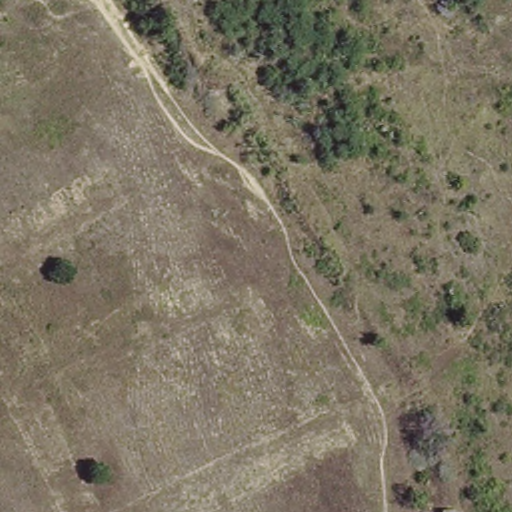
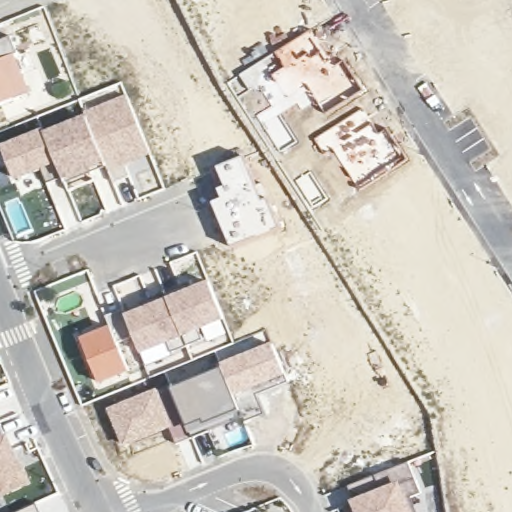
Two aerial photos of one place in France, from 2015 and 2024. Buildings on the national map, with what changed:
new [(18,54),(13,56),(28,94),(0,107),(0,41),(10,37),(18,54)]
new [(58,164),(44,132),(86,116),(84,112),(126,95),(149,154),(125,165),(131,177),(114,184),(107,167),(65,184),(63,177),(58,164)]
new [(40,171),(17,180),(3,146),(43,130),(58,164),(63,177),(48,185),(40,171)]
new [(223,199),(219,189),(226,187),(218,168),(243,157),(256,186),(261,183),(268,199),(281,227),(233,247),(214,202),(223,199)]
new [(209,280),(226,320),(199,331),(202,339),(188,344),(171,351),(168,343),(141,354),(134,337),(134,336),(125,315),(166,298),(209,280)]
new [(120,343),(133,371),(101,383),(83,339),(111,327),(107,317),(123,310),(134,336),(120,343)]
new [(173,388),(221,369),(221,367),(219,363),(272,341),(285,374),(287,381),(256,395),(263,414),(244,421),(241,413),(192,435),(173,388)]
new [(157,387),(174,427),(122,447),(106,408),(157,387)]
new [(183,424),(189,437),(176,443),(171,429),(183,424)]
new [(30,482),(0,495),(0,436),(8,433),(30,482)]
new [(406,461),(418,490),(407,495),(401,479),(351,497),(347,486),(406,461)]
new [(401,479),(407,495),(414,512),(356,512),(351,497),(401,479)]
new [(42,512),(15,512),(37,501),(42,512)]

